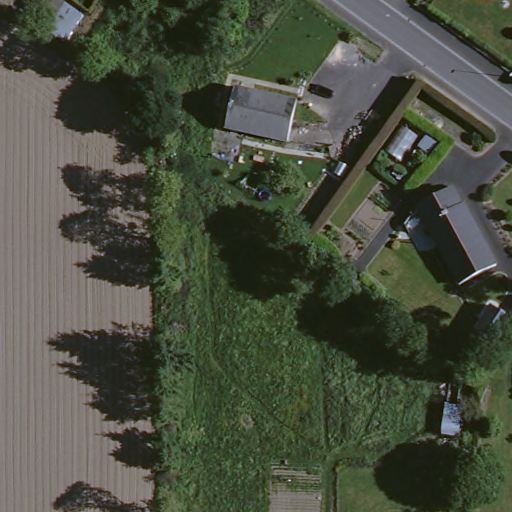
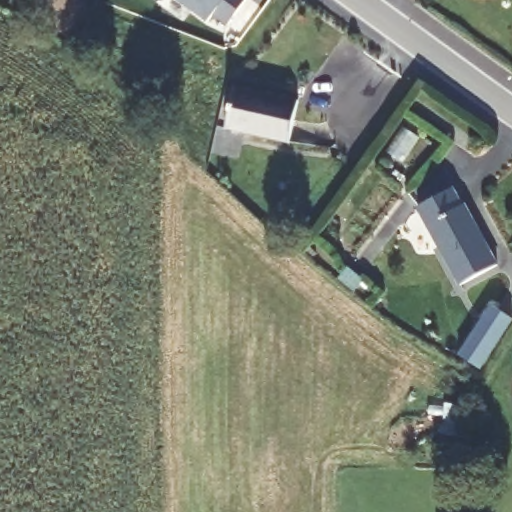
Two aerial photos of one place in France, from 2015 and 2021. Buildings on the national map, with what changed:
new [(213,13),(207,21),(180,0),(244,0),(227,24),(213,13)]
unchanged [(235,86),(299,100),(289,142),(225,128),(235,86)]
unchanged [(451,187),(496,265),(459,286),(414,209),(451,187)]
unchanged [(481,328),(505,342),(486,371),(463,358),(481,328)]
unchanged [(452,391),(469,396),(458,423),(443,417),(452,391)]

